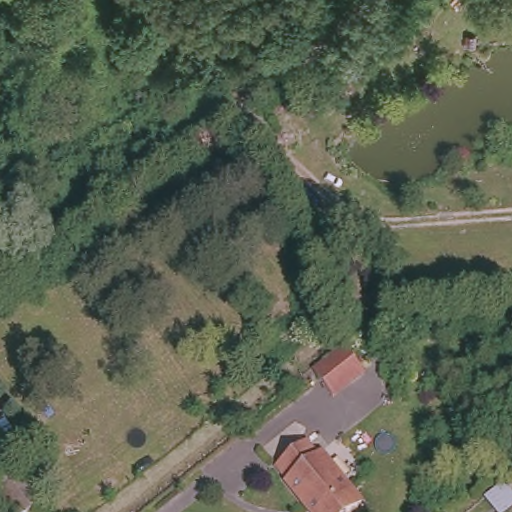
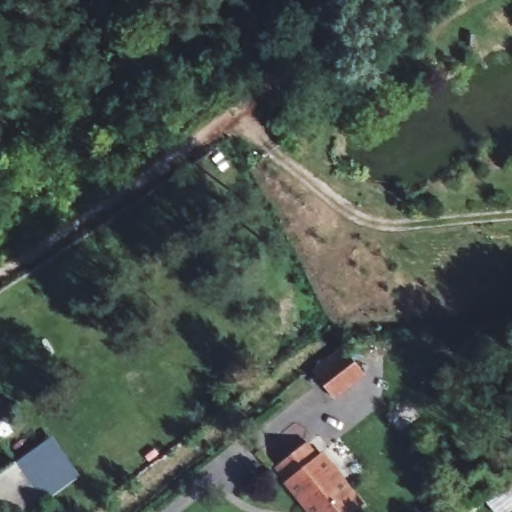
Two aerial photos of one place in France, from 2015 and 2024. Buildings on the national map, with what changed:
unchanged [(324,377),(355,351),(369,369),(338,396),(324,377)]
new [(34,487),(15,461),(52,436),(80,475),(44,500),(34,487)]
unchanged [(346,512),(319,512),(280,464),(309,441),(319,452),(322,449),(364,497),(346,512)]
unchanged [(0,496),(0,471),(15,461),(44,500),(24,512),(11,512),(0,496)]
unchanged [(502,512),(500,512),(485,492),(492,486),(494,489),(504,484),(500,479),(512,469),(512,504),(502,512)]

